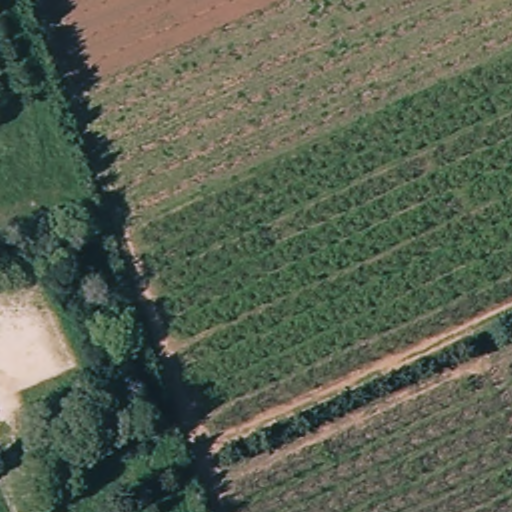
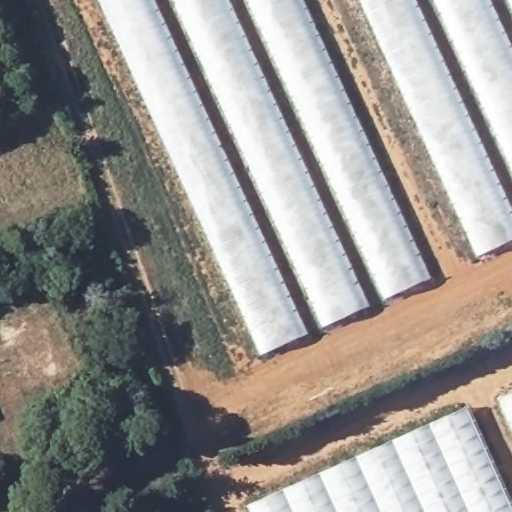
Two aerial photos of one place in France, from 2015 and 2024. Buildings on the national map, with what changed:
new [(431,277),(263,353),(101,0),(303,0),(431,277)]
new [(479,256),(362,0),(512,0),(512,240),(479,256)]
new [(512,393),(512,430),(498,400),(512,393)]
new [(464,407),(511,512),(246,512),(244,507),(464,407)]

